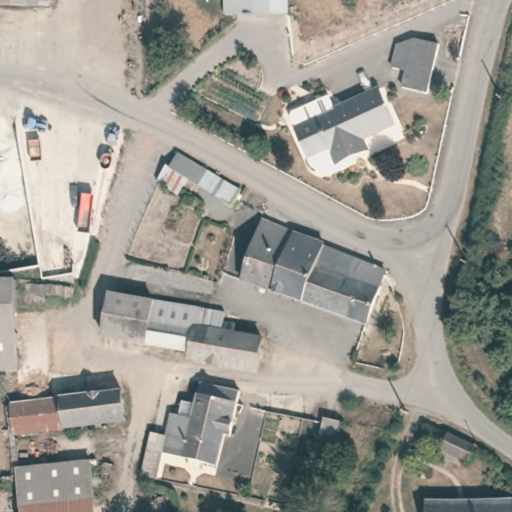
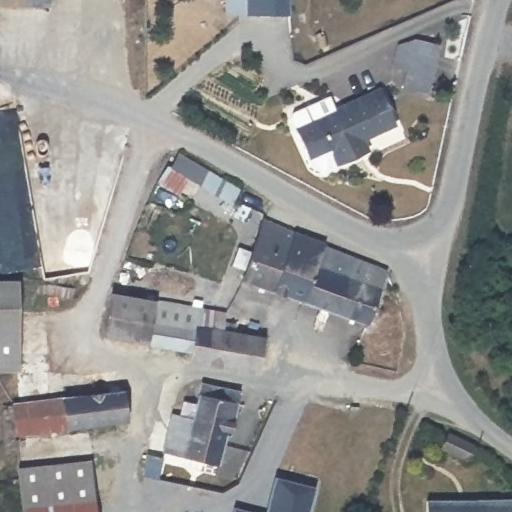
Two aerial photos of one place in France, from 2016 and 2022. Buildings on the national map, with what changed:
unchanged [(54,6),(0,4),(0,0),(53,0),(54,6)]
unchanged [(275,19),(239,18),(239,0),(275,0),(275,19)]
unchanged [(430,95),(405,88),(408,71),(394,67),(401,42),(414,38),(442,48),(430,95)]
unchanged [(397,116),(357,137),(361,147),(327,162),(313,155),(296,122),(382,82),(397,116)]
unchanged [(171,170),(175,156),(187,159),(241,190),(231,203),(189,179),(180,197),(157,183),(165,166),(171,170)]
unchanged [(247,282),(265,225),(322,245),(303,299),(247,282)]
unchanged [(368,319),(303,299),(322,245),(348,254),(385,273),(368,319)]
unchanged [(0,368),(0,280),(11,280),(17,367),(0,368)]
unchanged [(224,313),(222,322),(237,324),(236,331),(262,334),(258,371),(191,362),(190,353),(104,339),(109,297),(224,313)]
unchanged [(225,432),(219,461),(167,454),(175,414),(193,417),(200,382),(242,391),(233,433),(225,432)]
unchanged [(120,388),(125,418),(65,424),(62,394),(120,388)]
unchanged [(62,394),(65,424),(15,429),(13,399),(62,394)]
demolished [(338,420),(331,446),(317,443),(324,415),(338,420)]
unchanged [(477,443),(471,457),(445,447),(450,432),(477,443)]
unchanged [(145,477),(150,451),(167,454),(163,479),(145,477)]
unchanged [(102,468),(105,512),(19,512),(18,489),(17,473),(102,468)]
new [(265,512),(273,478),(315,486),(309,512),(265,512)]
unchanged [(512,499),(512,512),(431,512),(431,498),(512,499)]
new [(256,512),(230,512),(231,506),(256,512)]

